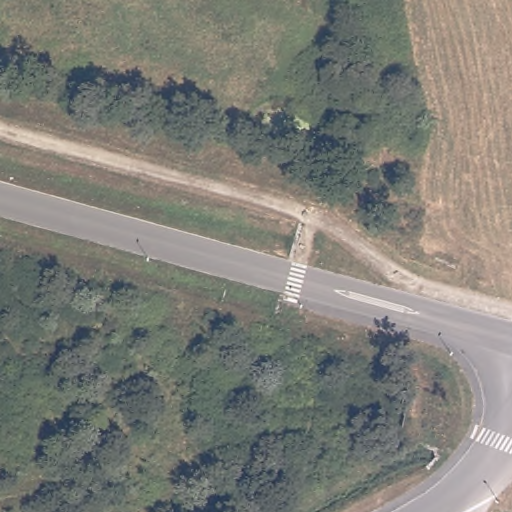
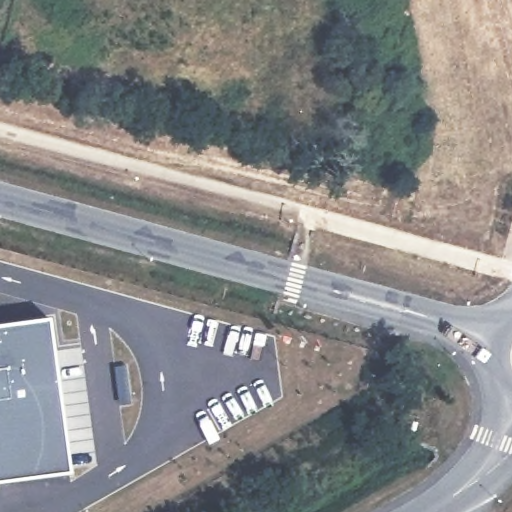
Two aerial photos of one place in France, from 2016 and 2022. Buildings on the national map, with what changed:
new [(71,475),(0,484),(0,326),(50,319),(71,475)]
unchanged [(415,401),(411,382),(433,377),(438,396),(415,401)]

